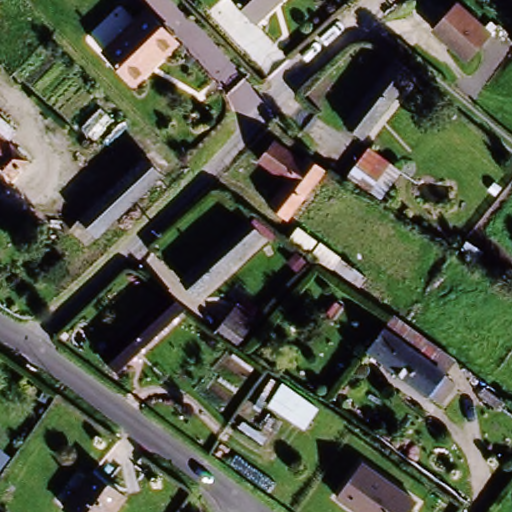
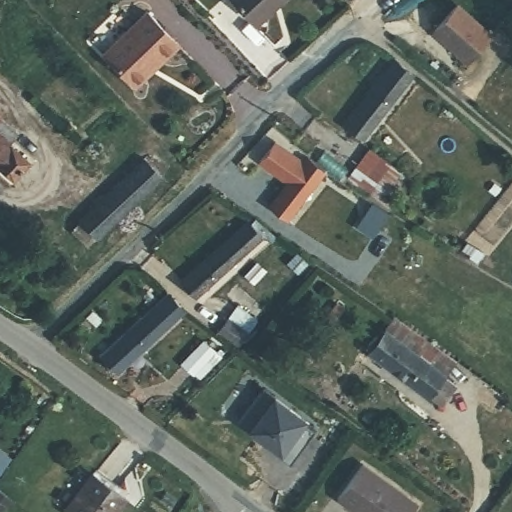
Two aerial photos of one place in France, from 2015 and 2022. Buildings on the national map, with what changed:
unchanged [(223,2),(225,0),(280,0),(250,30),(223,2)]
unchanged [(488,35),(465,61),(432,32),(455,6),(488,35)]
unchanged [(126,83),(100,55),(145,15),(173,46),(152,67),(130,87),(126,83)]
unchanged [(342,124),(391,62),(410,76),(360,139),(342,124)]
unchanged [(12,139),(6,145),(27,165),(12,181),(0,170),(0,122),(15,136),(12,139)]
unchanged [(287,185),(258,162),(275,141),(304,164),(308,159),(325,172),(287,223),(268,210),(287,185)]
unchanged [(375,183),(355,168),(368,149),(389,164),(375,183)]
unchanged [(84,215),(137,166),(147,157),(164,174),(154,183),(100,232),(87,245),(70,227),(84,215)]
unchanged [(181,288),(250,223),(270,237),(197,305),(181,288)]
unchanged [(292,245),(299,235),(314,246),(307,256),(292,245)]
unchanged [(183,307),(115,372),(98,354),(168,290),(183,307)]
unchanged [(429,398),(367,353),(383,332),(391,321),(453,366),(445,378),(455,386),(439,406),(429,398)]
new [(272,392),(305,417),(315,427),(288,462),(265,446),(269,443),(247,427),(235,420),(262,383),(272,392)]
unchanged [(363,463),(418,501),(410,512),(351,512),(335,500),(363,463)]
unchanged [(112,512),(68,512),(62,507),(91,473),(122,500),(112,512)]

